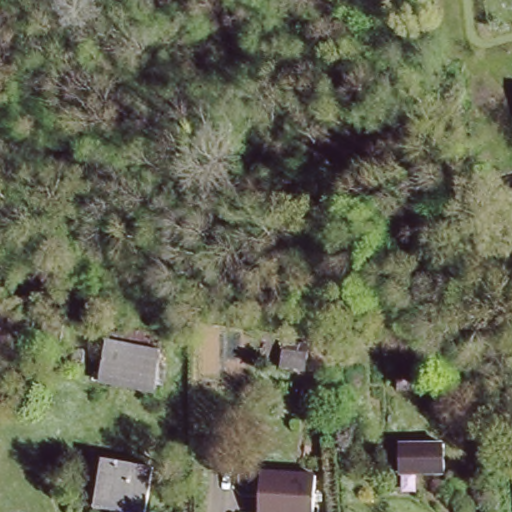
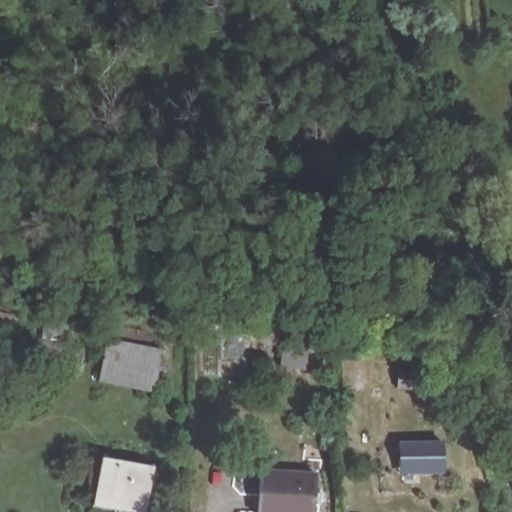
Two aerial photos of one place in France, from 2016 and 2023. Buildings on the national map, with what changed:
unchanged [(108,336),(167,348),(159,390),(100,378),(108,336)]
unchanged [(299,346),(297,365),(275,364),(276,345),(299,346)]
unchanged [(403,470),(400,447),(447,442),(450,471),(422,475),(404,477),(403,470)]
unchanged [(154,470),(146,512),(116,512),(93,507),(103,460),(154,470)]
unchanged [(314,512),(261,512),(263,472),(315,473),(314,512)]

